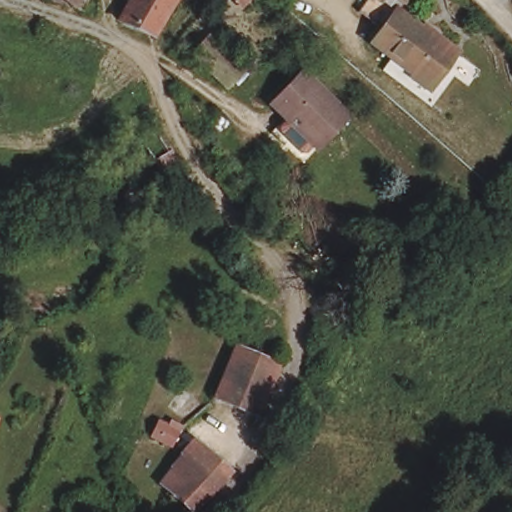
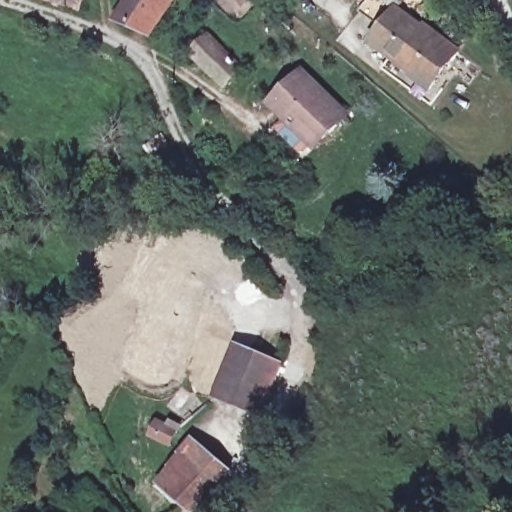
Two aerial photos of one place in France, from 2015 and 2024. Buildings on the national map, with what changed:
unchanged [(47,0),(85,0),(81,11),(47,0)]
unchanged [(113,22),(125,0),(169,0),(146,36),(113,22)]
unchanged [(238,0),(247,0),(243,5),(238,0)]
unchanged [(407,11),(448,41),(450,39),(467,51),(444,83),(428,71),(425,75),(382,43),(395,25),(388,20),(385,24),(368,11),(377,0),(416,0),(412,4),(407,11)]
unchanged [(243,70),(225,86),(195,56),(211,39),(243,70)]
unchanged [(300,86),(310,76),(352,117),(306,164),(275,133),(290,119),(275,105),(281,99),(297,83),(300,86)]
unchanged [(259,415),(215,397),(236,346),(280,364),(259,415)]
unchanged [(177,431),(171,446),(150,436),(157,421),(177,431)]
unchanged [(189,435),(211,453),(226,467),(215,480),(206,489),(206,488),(190,502),(159,475),(189,435)]

